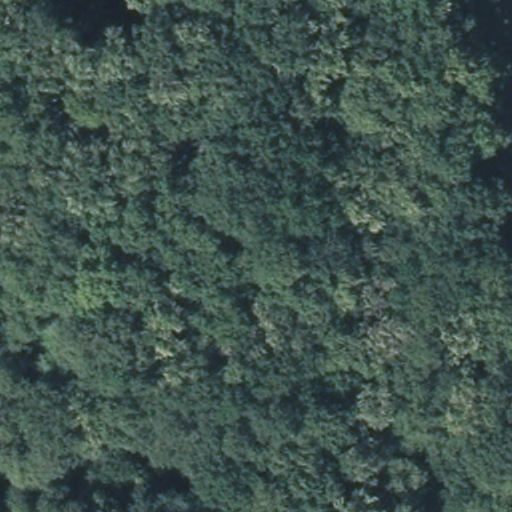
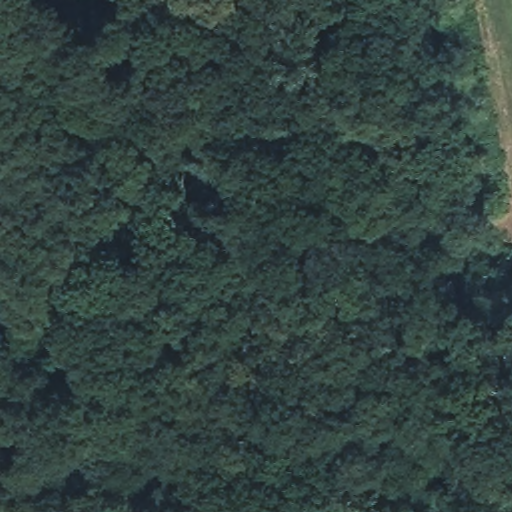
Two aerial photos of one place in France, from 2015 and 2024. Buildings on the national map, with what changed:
[]

